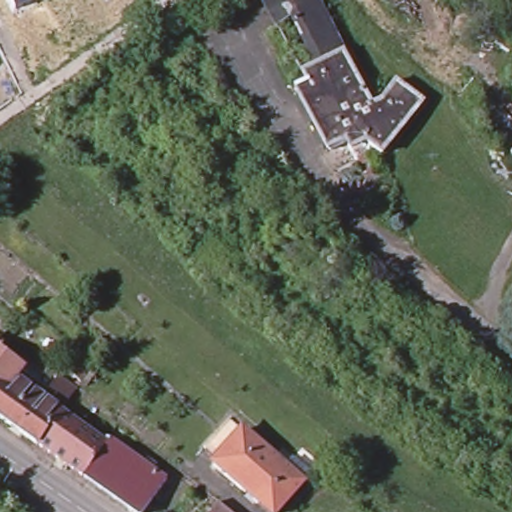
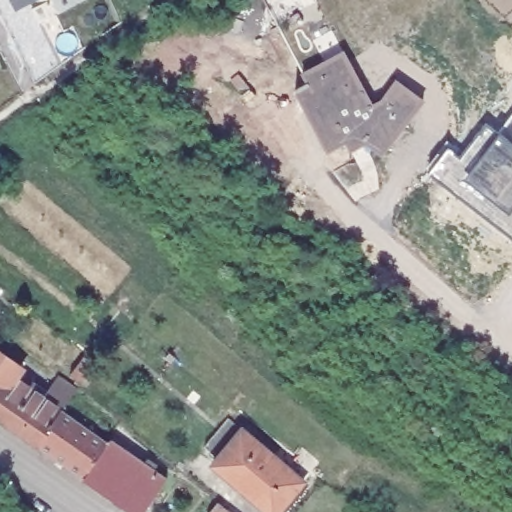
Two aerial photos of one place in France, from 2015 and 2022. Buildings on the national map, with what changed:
unchanged [(36,0),(16,10),(11,0),(36,0)]
unchanged [(373,145),(358,156),(349,146),(329,156),(295,91),(307,84),(300,69),(314,60),(294,17),(272,32),(258,0),(323,0),(371,106),(393,77),(428,101),(385,156),(373,145)]
new [(448,147),(462,160),(487,125),(499,136),(512,118),(512,241),(428,175),(448,147)]
unchanged [(0,423),(0,383),(8,372),(11,367),(29,380),(26,385),(71,413),(67,420),(109,455),(90,485),(44,453),(0,423)]
unchanged [(277,512),(268,512),(213,464),(216,461),(242,430),(301,482),(277,511),(277,512)]
unchanged [(109,455),(113,449),(170,489),(155,512),(126,512),(90,485),(109,455)]
unchanged [(227,512),(208,512),(216,503),(227,512)]

